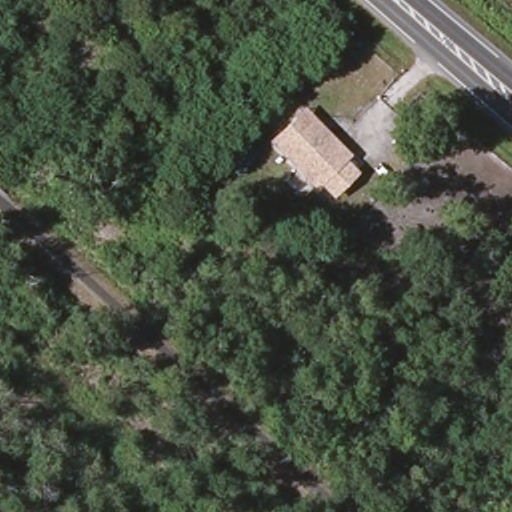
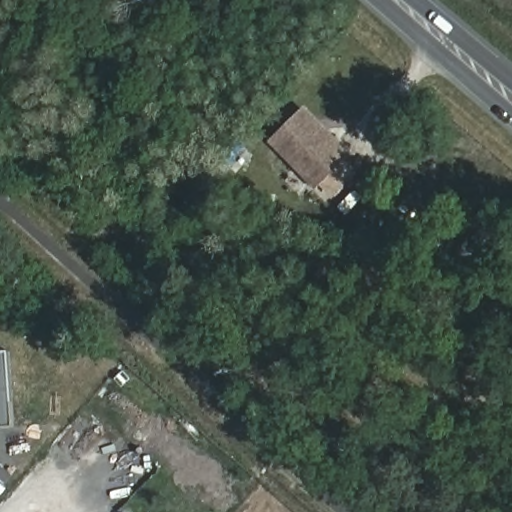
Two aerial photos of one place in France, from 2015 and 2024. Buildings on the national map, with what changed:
unchanged [(377,150),(330,199),(269,144),(303,106),(350,147),(362,136),(377,150)]
new [(0,352),(10,352),(15,427),(0,428),(0,352)]

